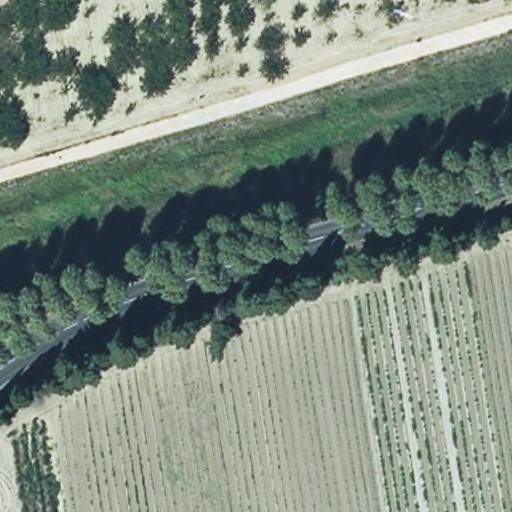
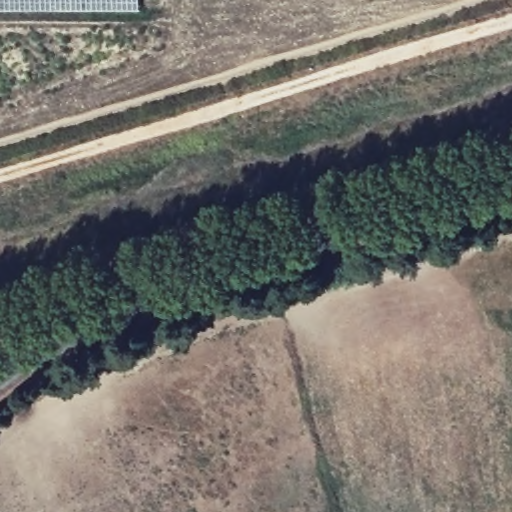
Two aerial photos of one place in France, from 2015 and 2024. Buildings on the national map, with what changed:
new [(0,10),(0,0),(139,0),(139,10),(0,10)]

